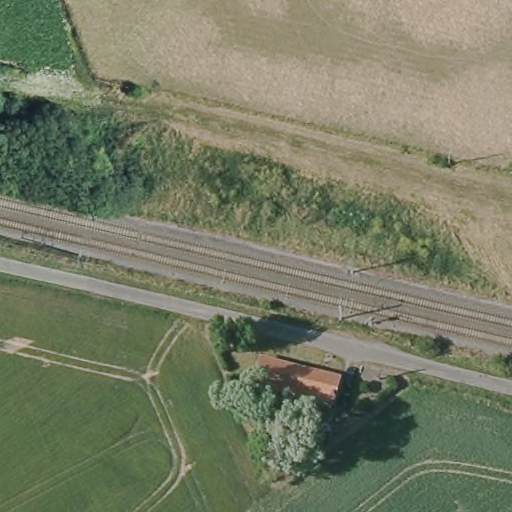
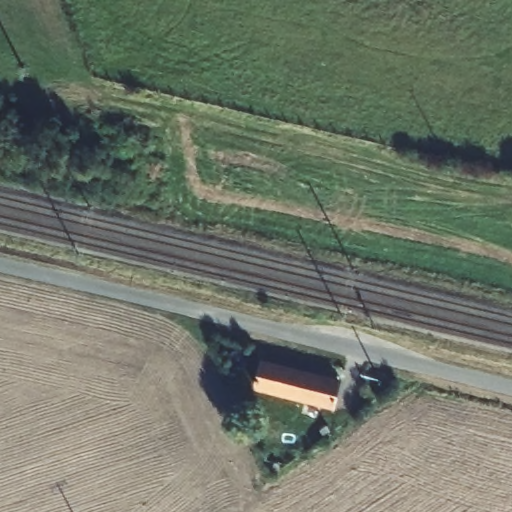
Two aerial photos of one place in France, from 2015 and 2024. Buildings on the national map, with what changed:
unchanged [(261,362),(340,382),(333,408),(255,388),(261,362)]
unchanged [(298,449),(265,442),(268,429),(284,432),(286,421),(297,423),(295,434),(300,436),(298,449)]
unchanged [(320,430),(326,426),(330,432),(325,435),(320,430)]

